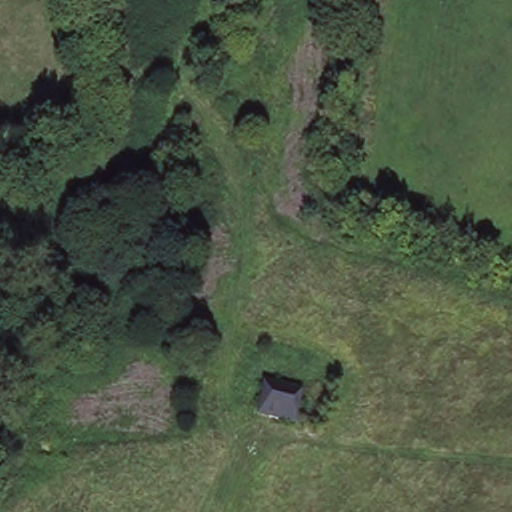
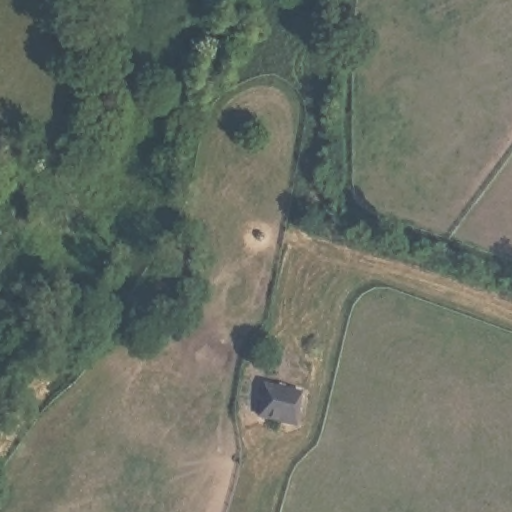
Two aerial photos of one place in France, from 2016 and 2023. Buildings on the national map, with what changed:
unchanged [(300,392),(295,422),(256,415),(262,382),(300,392)]

